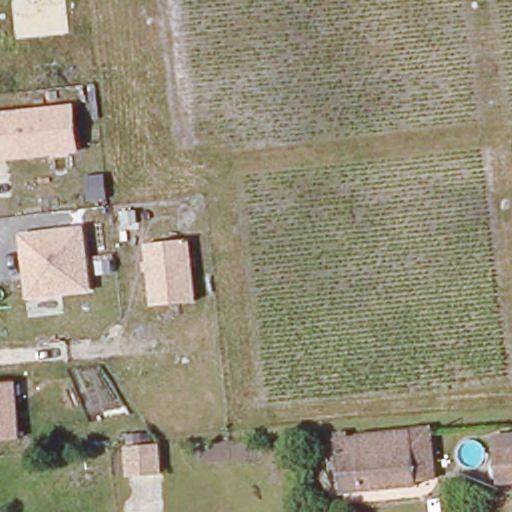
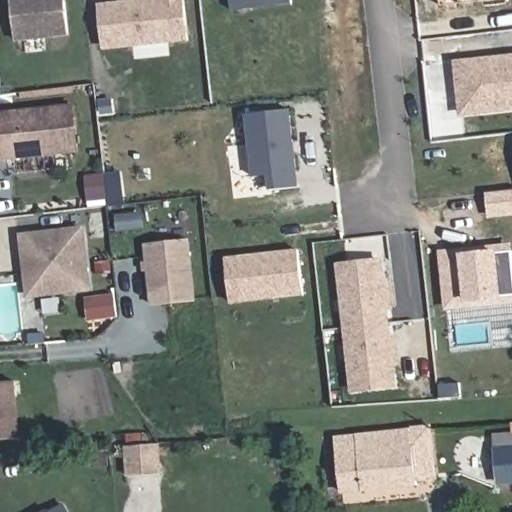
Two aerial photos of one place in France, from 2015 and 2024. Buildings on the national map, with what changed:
new [(12,0),(66,0),(70,36),(15,41),(12,0)]
new [(181,0),(185,38),(105,46),(100,6),(136,2),(136,0),(181,0)]
new [(231,11),(230,0),(292,0),(292,4),(231,11)]
new [(440,6),(440,0),(480,0),(480,1),(440,6)]
new [(480,0),(489,0),(480,1),(480,0)]
new [(506,56),(512,56),(512,108),(462,114),(456,60),(506,56)]
unchanged [(0,164),(0,116),(76,108),(80,155),(0,164)]
new [(290,110),(298,187),(271,190),(270,175),(254,177),(247,115),(290,110)]
unchanged [(85,228),(92,291),(29,299),(23,236),(85,228)]
unchanged [(200,304),(152,309),(146,246),(192,239),(200,304)]
new [(260,254),(297,249),(302,293),(230,301),(225,258),(253,255),(260,254)]
new [(512,252),(512,296),(452,302),(447,257),(512,252)]
new [(340,265),(380,261),(387,323),(346,328),(340,265)]
new [(387,323),(395,387),(353,391),(346,328),(387,323)]
unchanged [(20,438),(0,440),(0,384),(18,383),(20,438)]
unchanged [(431,480),(413,480),(413,487),(337,493),(330,441),(351,440),(352,433),(430,428),(431,480)]
unchanged [(491,484),(490,454),(491,454),(490,439),(512,437),(512,482),(491,484)]
unchanged [(157,441),(160,473),(129,474),(129,443),(157,441)]

